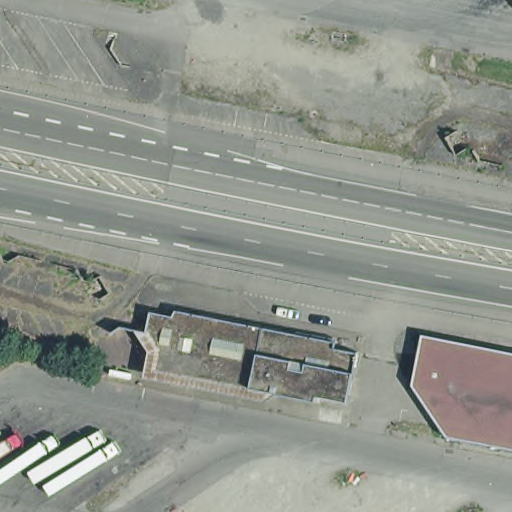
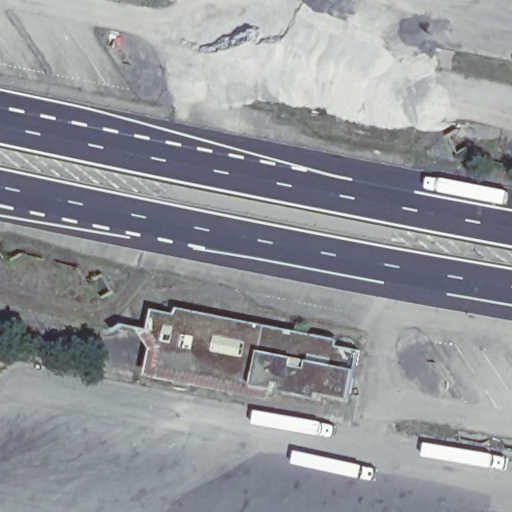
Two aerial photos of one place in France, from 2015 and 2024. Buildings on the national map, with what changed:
unchanged [(354,402),(327,397),(321,401),(283,394),(272,400),(151,376),(155,349),(143,331),(153,331),(157,312),(180,316),(183,311),(339,342),(338,348),(363,354),(354,402)]
demolished [(453,437),(419,387),(430,336),(512,352),(512,447),(453,437)]

